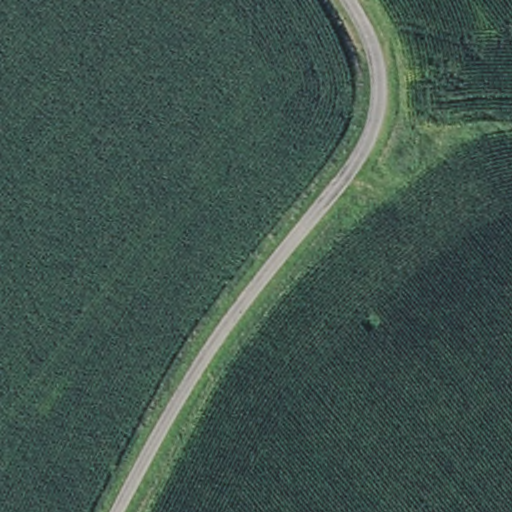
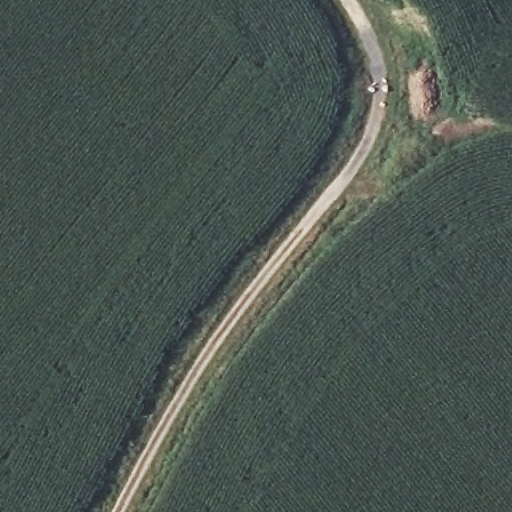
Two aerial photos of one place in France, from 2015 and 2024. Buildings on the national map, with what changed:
[]

